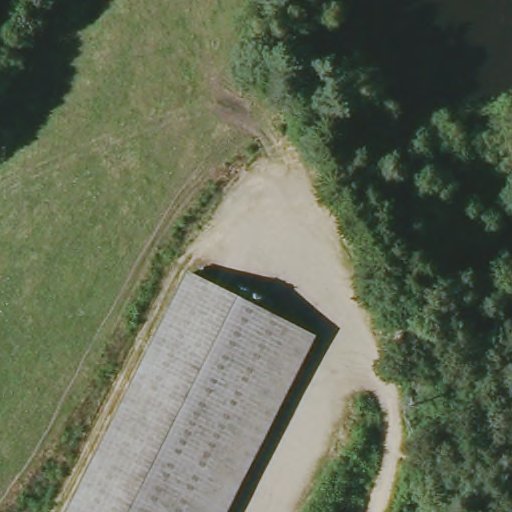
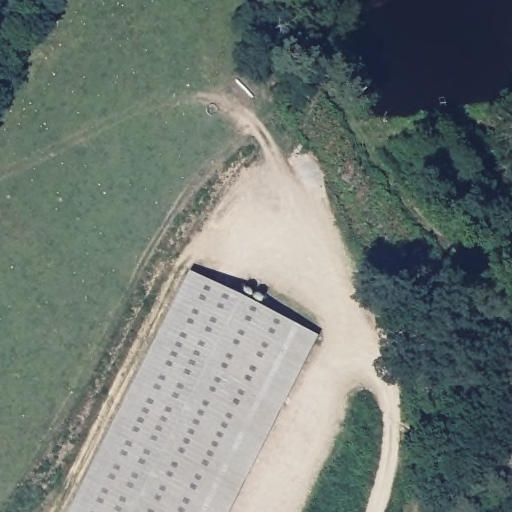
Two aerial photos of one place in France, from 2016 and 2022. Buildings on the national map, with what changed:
unchanged [(205,512),(71,512),(189,268),(298,321),(205,512)]
unchanged [(316,330),(227,512),(205,512),(298,321),(316,330)]

